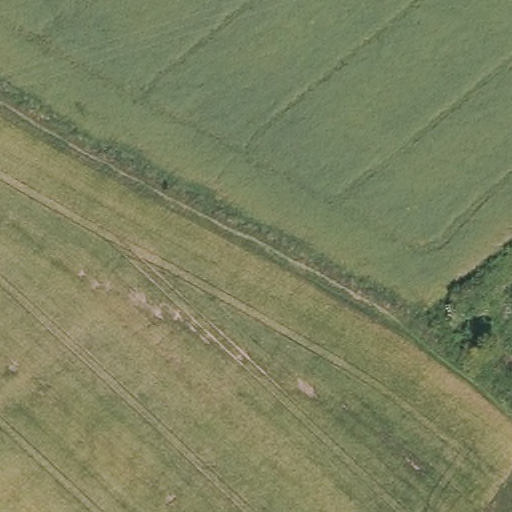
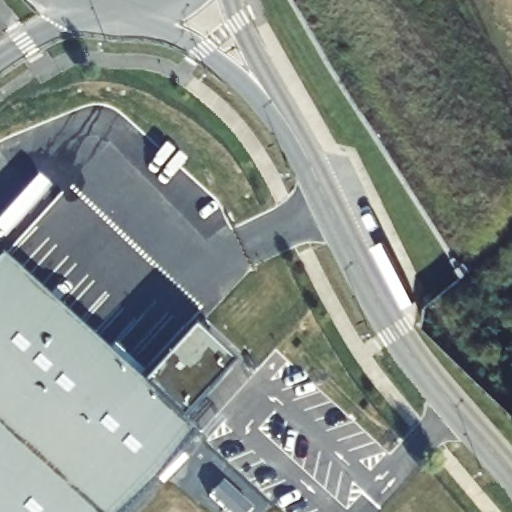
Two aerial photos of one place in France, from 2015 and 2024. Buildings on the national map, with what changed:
new [(193,330),(231,364),(175,426),(191,440),(127,512),(0,512),(0,259),(139,388),(193,330)]

